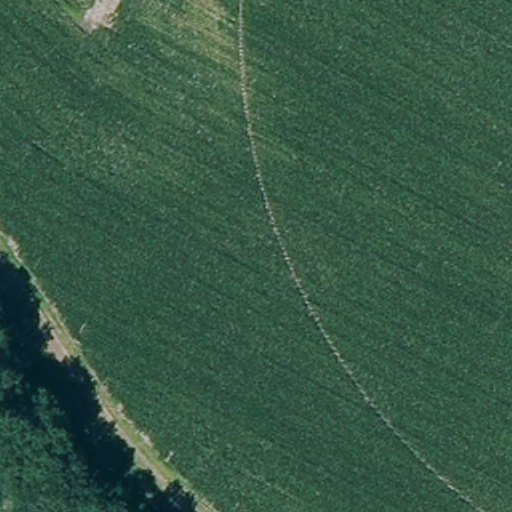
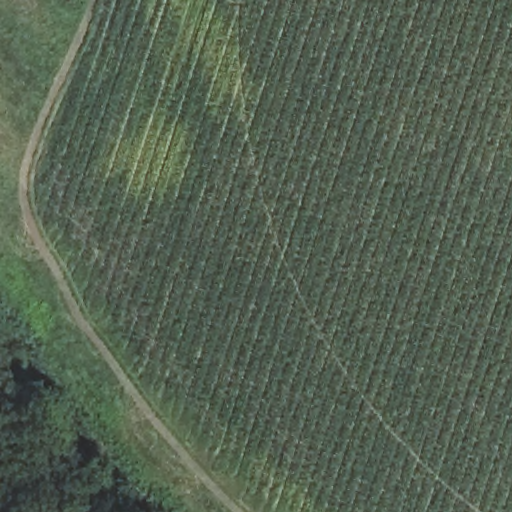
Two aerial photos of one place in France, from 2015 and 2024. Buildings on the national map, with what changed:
[]

